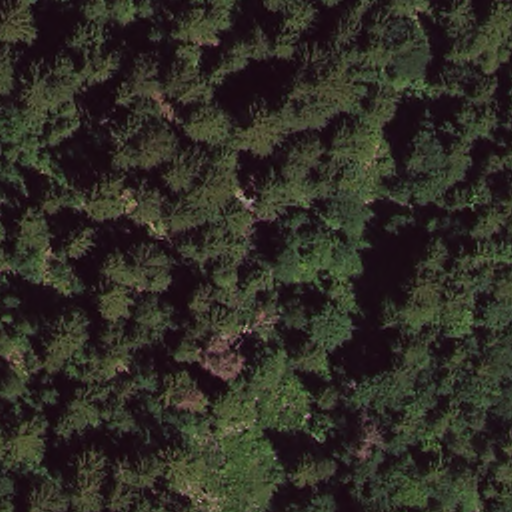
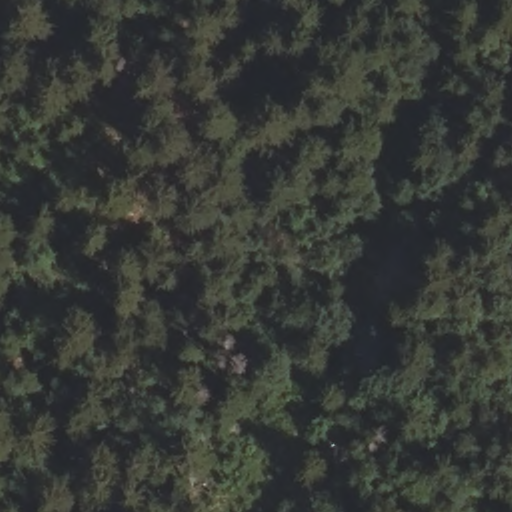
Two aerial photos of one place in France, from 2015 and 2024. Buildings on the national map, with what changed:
[]

